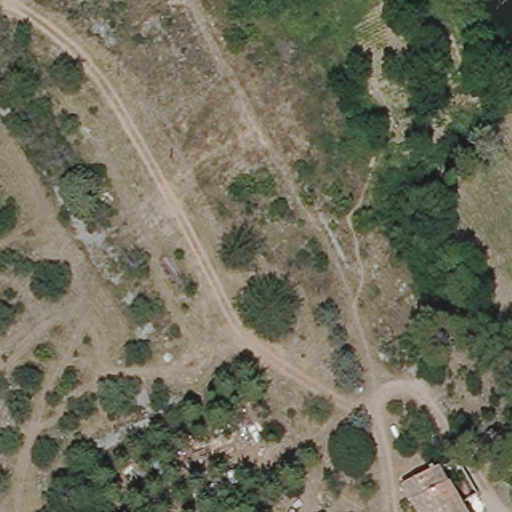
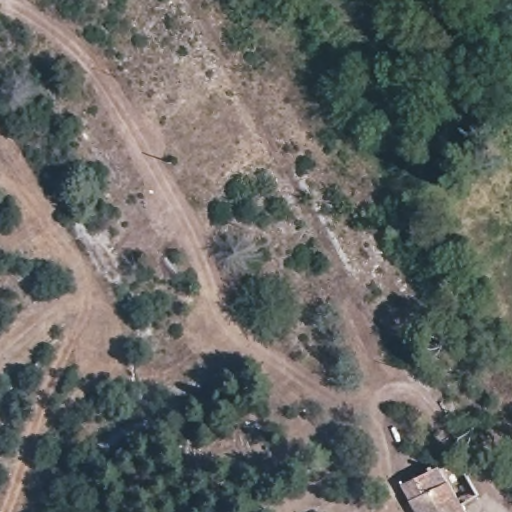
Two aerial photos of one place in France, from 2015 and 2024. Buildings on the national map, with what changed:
unchanged [(420,512),(404,486),(443,467),(470,512),(420,512)]

